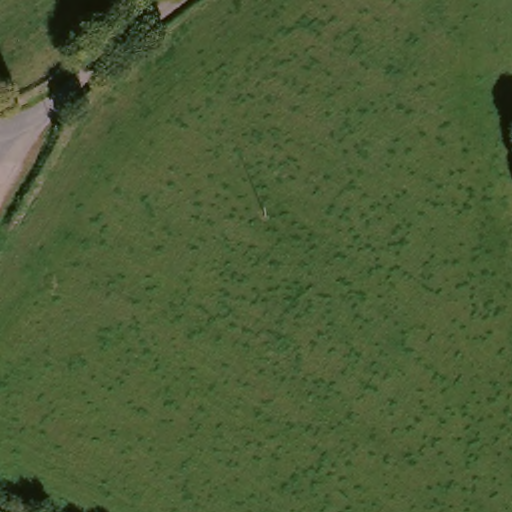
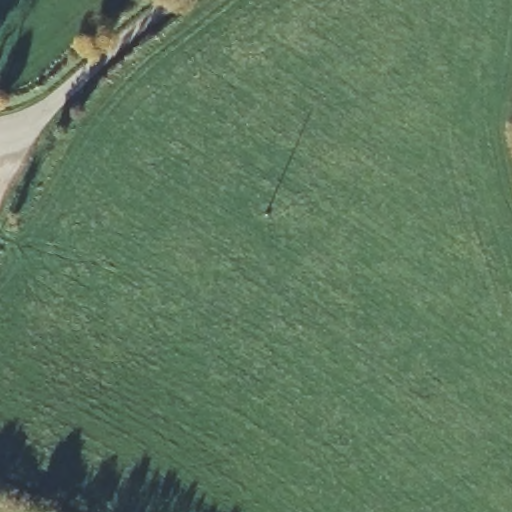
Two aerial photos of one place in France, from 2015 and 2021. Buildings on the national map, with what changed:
[]

